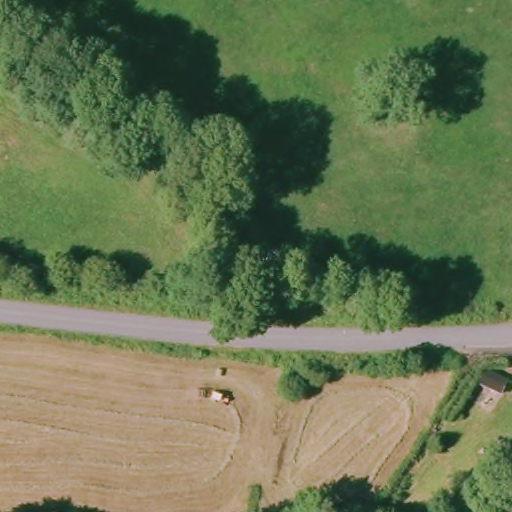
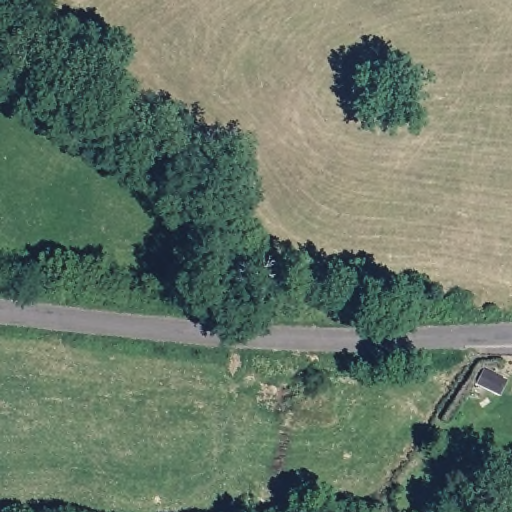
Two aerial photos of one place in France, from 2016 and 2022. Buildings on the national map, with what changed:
unchanged [(477,377),(500,387),(493,400),(472,390),(477,377)]

